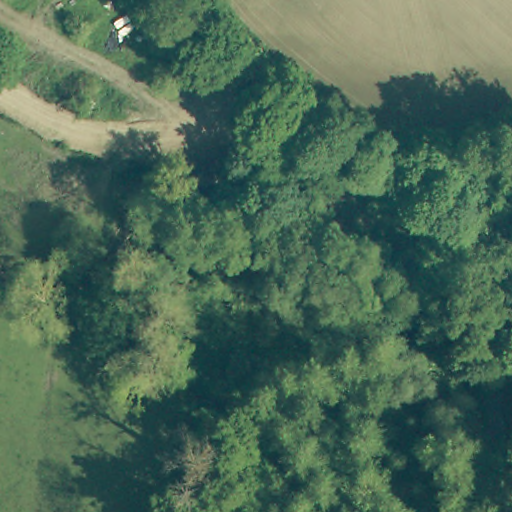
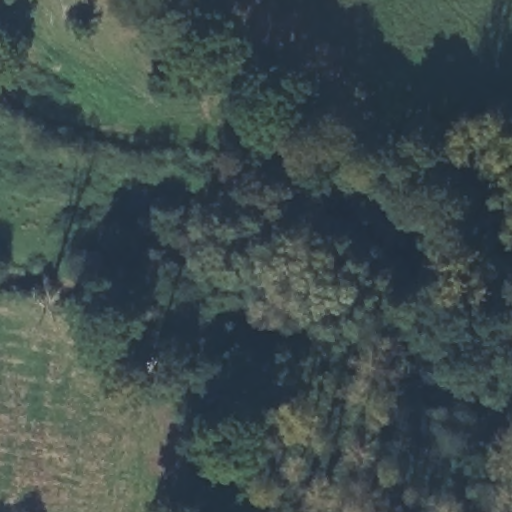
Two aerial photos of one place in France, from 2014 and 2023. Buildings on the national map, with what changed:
[]

